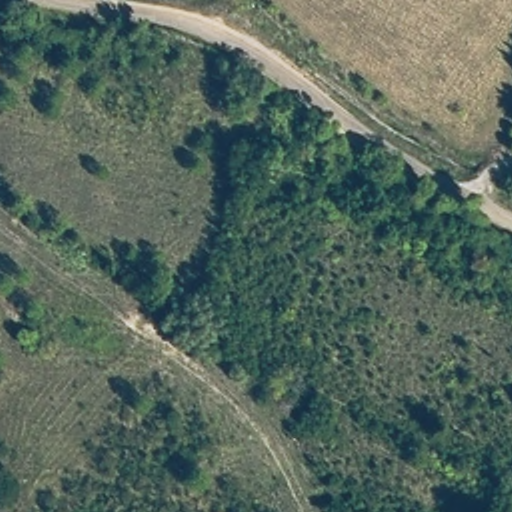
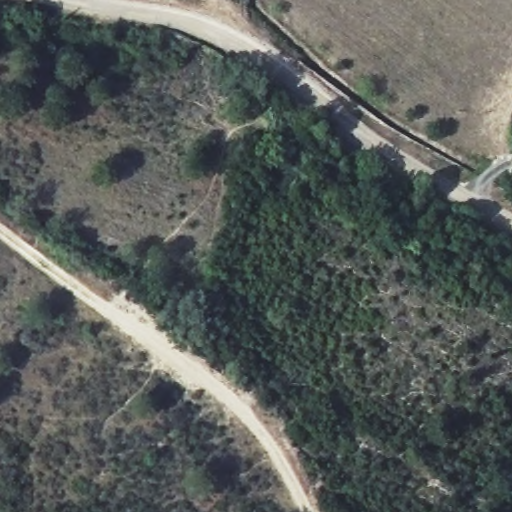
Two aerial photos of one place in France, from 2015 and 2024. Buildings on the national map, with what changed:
unchanged [(511,508),(512,506),(512,509),(511,508)]

